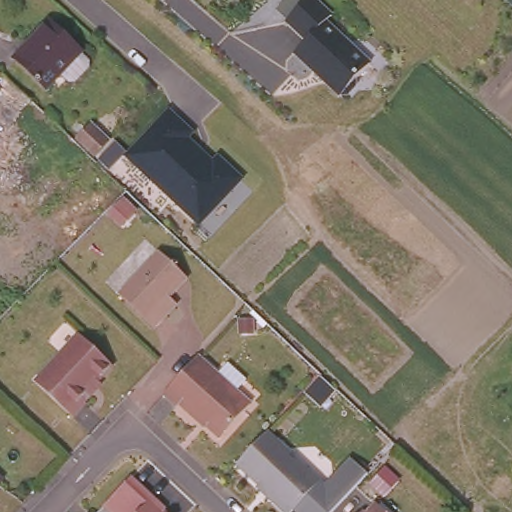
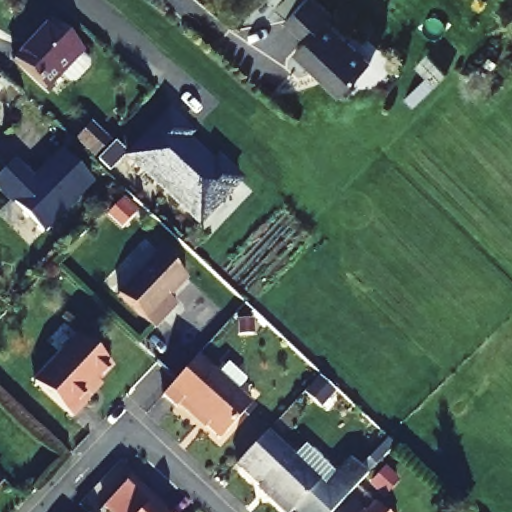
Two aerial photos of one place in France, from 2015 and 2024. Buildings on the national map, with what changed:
unchanged [(305,0),(310,0),(329,17),(335,11),(380,52),(354,81),(354,87),(347,96),(340,96),(337,98),(322,85),(322,81),(312,73),(310,73),(292,56),(304,42),(284,23),(305,0)]
unchanged [(81,66),(78,73),(73,78),(68,82),(64,85),(60,85),(52,77),(39,91),(7,60),(45,21),(76,51),(74,54),(81,61),(81,66)]
demolished [(17,127),(25,136),(0,158),(0,125),(27,99),(35,107),(17,127)]
unchanged [(244,179),(200,226),(124,157),(109,172),(98,161),(116,142),(129,152),(169,108),(195,132),(190,138),(214,161),(218,155),(244,179)]
unchanged [(107,143),(94,156),(92,155),(75,139),(89,126),(105,142),(107,143)]
new [(32,178),(60,150),(90,180),(40,230),(0,189),(0,170),(12,158),(32,178)]
unchanged [(191,271),(172,291),(177,295),(154,318),(121,287),(162,245),(191,271)]
unchanged [(112,365),(80,399),(84,403),(70,418),(32,382),(79,333),(112,365)]
unchanged [(257,399),(247,410),(227,432),(218,441),(165,392),(204,349),(257,399)]
unchanged [(325,482),(350,456),(368,472),(332,512),(296,512),(292,508),(289,512),(285,512),(237,464),(270,429),(325,482)]
unchanged [(160,511),(161,512),(134,512),(149,496),(162,508),(160,511)]
unchanged [(351,512),(362,501),(374,512),(351,512)]

